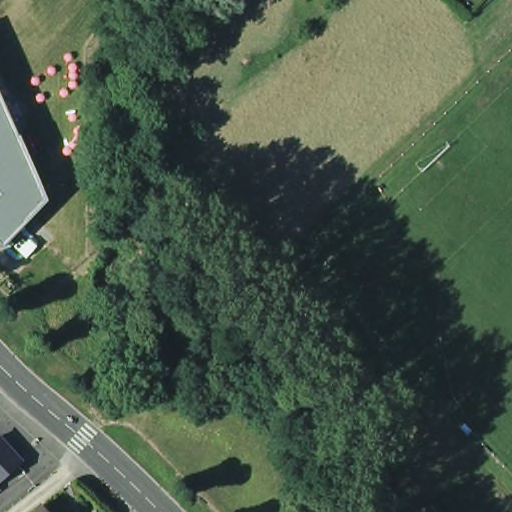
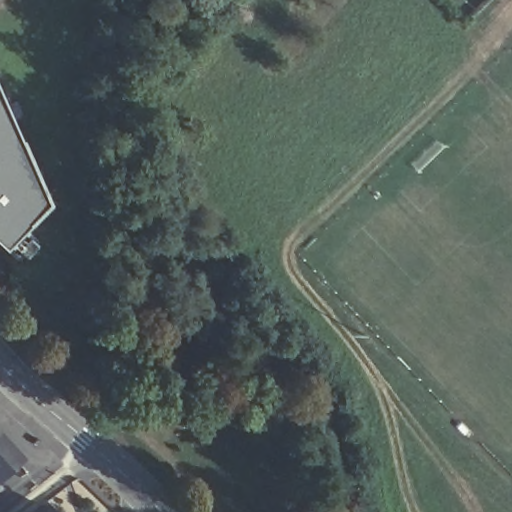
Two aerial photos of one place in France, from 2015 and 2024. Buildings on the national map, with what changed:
unchanged [(0,248),(0,100),(45,201),(0,248)]
unchanged [(0,449),(18,468),(0,486),(0,449)]
unchanged [(45,512),(32,512),(40,506),(45,512)]

